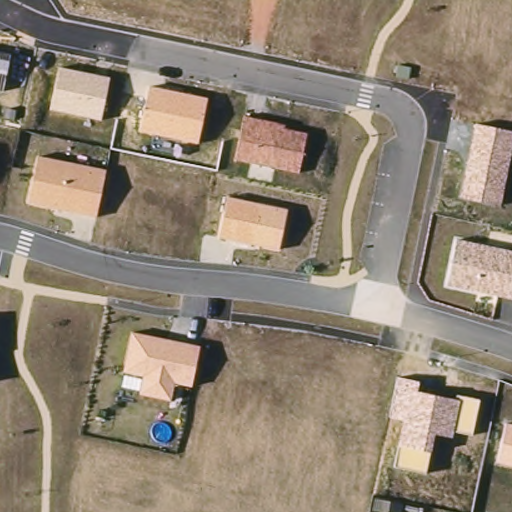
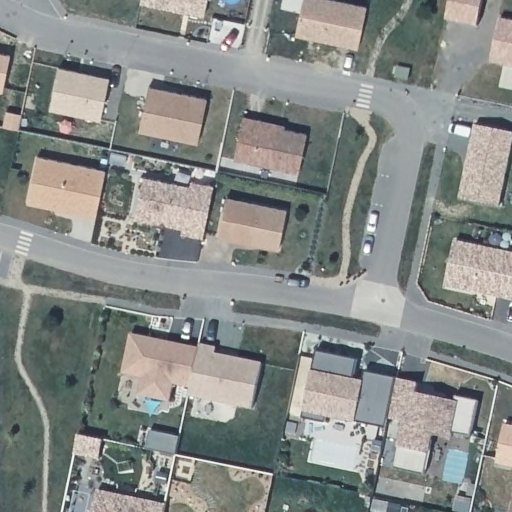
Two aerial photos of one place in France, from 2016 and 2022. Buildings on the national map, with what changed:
new [(158,0),(225,0),(221,20),(157,7),(158,0)]
new [(319,0),(326,0),(382,12),(373,54),(311,40),(319,0)]
new [(453,0),(486,0),(481,23),(449,17),(453,0)]
new [(503,16),(512,17),(512,63),(502,61),(493,59),(497,40),(503,16)]
unchanged [(0,54),(12,57),(3,91),(0,90),(0,54)]
unchanged [(51,110),(58,68),(110,79),(100,119),(51,110)]
unchanged [(139,132),(147,88),(207,102),(197,145),(139,132)]
unchanged [(235,159),(244,119),(287,126),(287,131),(307,133),(298,173),(235,159)]
unchanged [(512,131),(512,151),(500,208),(459,199),(476,126),(512,131)]
unchanged [(27,204),(37,157),(102,169),(95,217),(27,204)]
new [(134,220),(144,177),(191,186),(191,181),(213,185),(202,237),(182,233),(182,228),(134,220)]
unchanged [(218,236),(226,198),(288,212),(278,250),(218,236)]
unchanged [(447,286),(456,241),(512,252),(512,300),(447,286)]
unchanged [(176,385),(172,401),(141,395),(144,378),(122,374),(132,334),(200,347),(191,388),(176,385)]
new [(192,388),(200,347),(201,342),(217,345),(217,352),(262,361),(254,409),(191,395),(192,388)]
new [(357,358),(353,377),(365,380),(367,372),(397,378),(387,417),(386,426),(357,419),(357,421),(327,415),(327,420),(303,416),(312,368),(315,369),(317,351),(357,358)]
unchanged [(473,435),(455,430),(452,438),(435,434),(426,476),(393,469),(401,422),(389,418),(397,378),(419,383),(417,391),(454,398),(456,393),(480,400),(473,435)]
unchanged [(497,462),(506,423),(512,424),(512,465),(497,462)]
new [(166,429),(196,435),(192,454),(162,448),(166,429)]
new [(166,503),(163,512),(94,512),(99,489),(166,503)]

